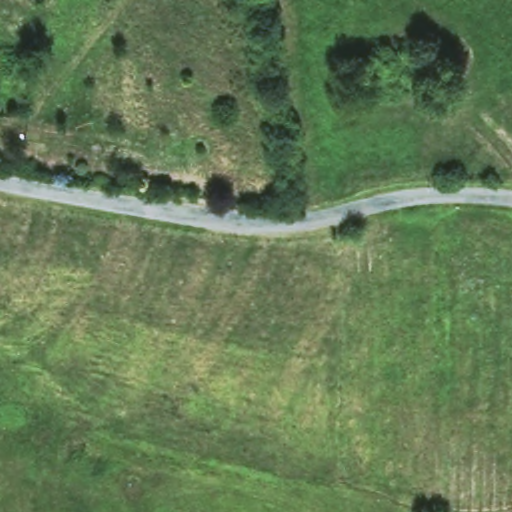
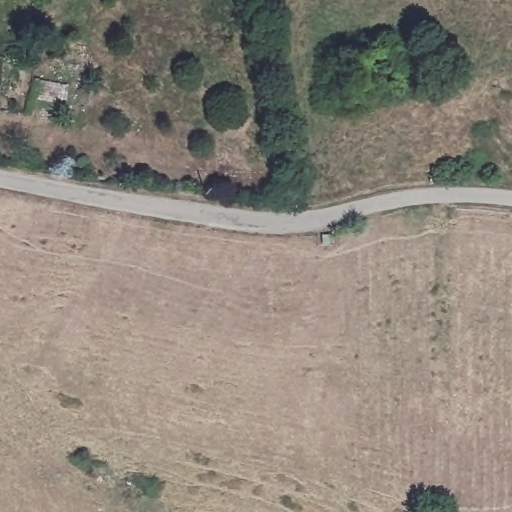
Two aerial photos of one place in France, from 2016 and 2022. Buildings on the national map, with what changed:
unchanged [(2,40),(0,73),(0,40),(2,40)]

